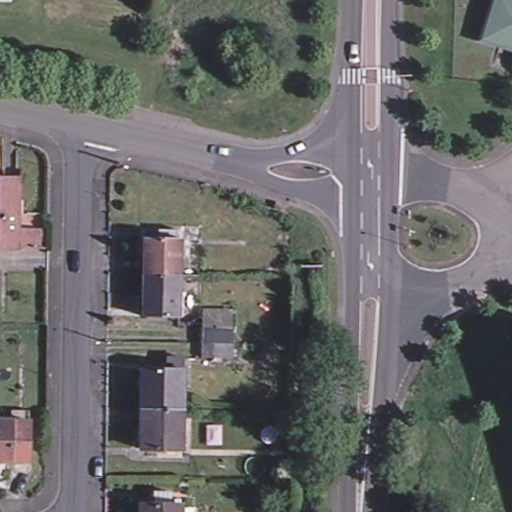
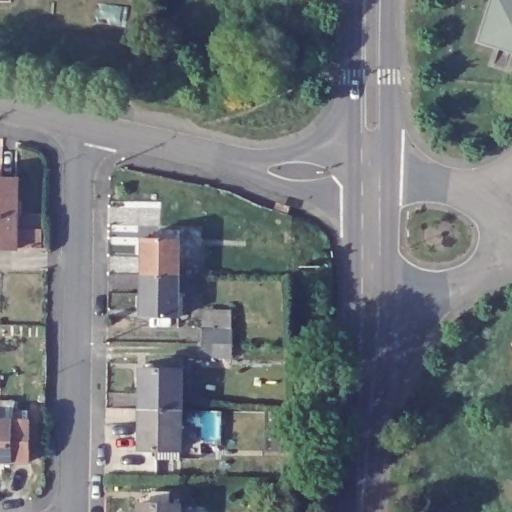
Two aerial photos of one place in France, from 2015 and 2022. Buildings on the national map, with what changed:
unchanged [(494,0),(512,0),(512,50),(480,40),(494,0)]
unchanged [(21,176),(20,242),(0,242),(0,175),(21,176)]
unchanged [(162,244),(162,235),(183,236),(183,244),(183,280),(147,280),(147,243),(162,244)]
unchanged [(147,323),(147,280),(183,280),(183,323),(147,323)]
unchanged [(211,333),(241,333),(240,348),(240,362),(211,362),(211,348),(211,333)]
unchanged [(145,415),(145,375),(166,375),(166,362),(183,362),(183,375),(183,416),(145,415)]
unchanged [(15,411),(15,422),(15,463),(0,463),(0,411),(15,411)]
unchanged [(182,455),(145,454),(145,415),(183,416),(182,455)]
unchanged [(138,493),(178,493),(178,512),(138,512),(138,493)]

